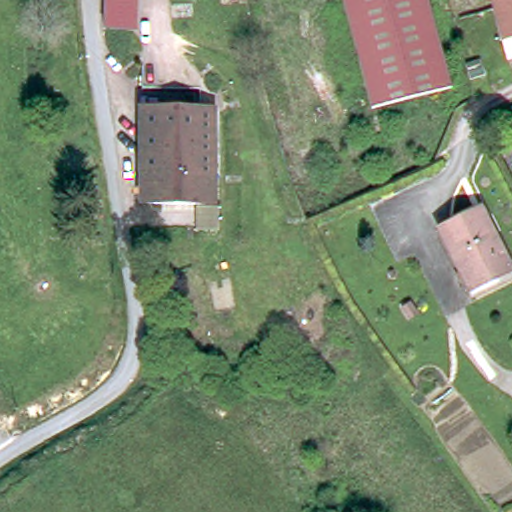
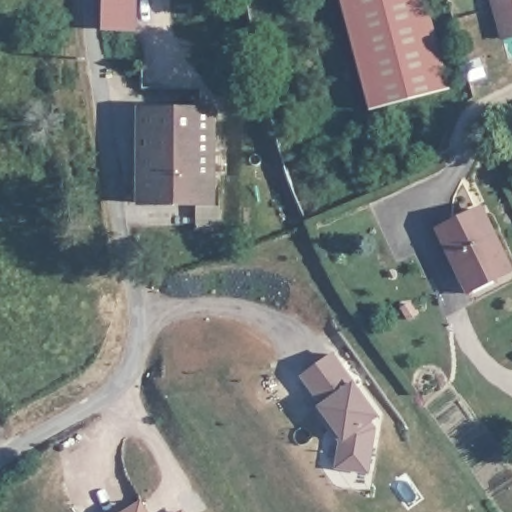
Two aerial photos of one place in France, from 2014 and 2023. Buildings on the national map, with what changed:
unchanged [(103,25),(103,0),(135,0),(134,28),(108,27),(103,25)]
unchanged [(456,90),(376,110),(345,0),(431,0),(456,90)]
unchanged [(502,37),(492,0),(512,0),(512,35),(502,37)]
unchanged [(217,203),(145,202),(145,107),(218,107),(217,203)]
unchanged [(500,246),(504,244),(512,260),(512,271),(500,277),(502,280),(475,293),(443,227),(481,208),(500,246)]
new [(356,380),(379,417),(371,472),(336,468),(341,436),(319,404),(301,376),(334,352),(356,380)]
new [(150,512),(123,512),(143,500),(150,512)]
new [(186,512),(178,512),(183,508),(186,512)]

